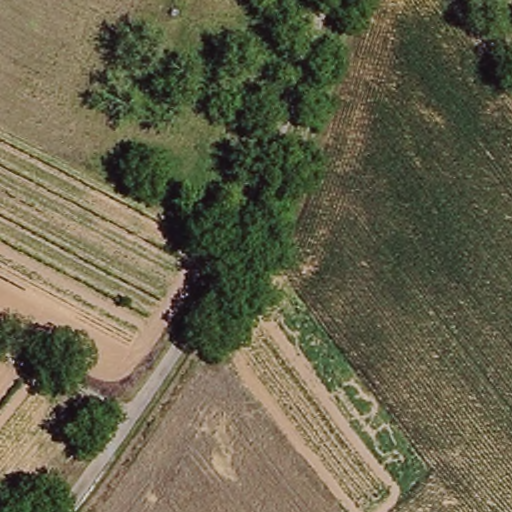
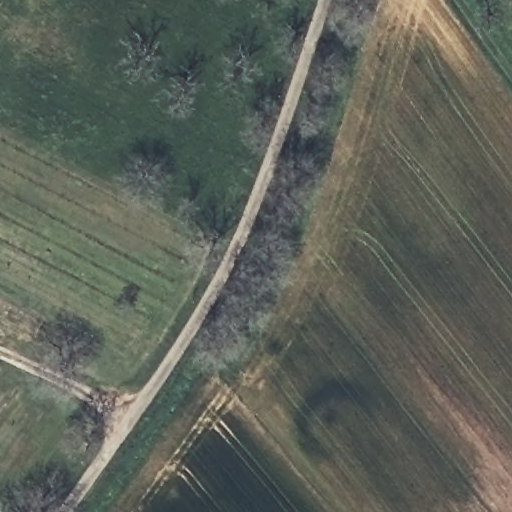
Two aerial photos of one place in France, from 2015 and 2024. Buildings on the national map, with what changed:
[]

